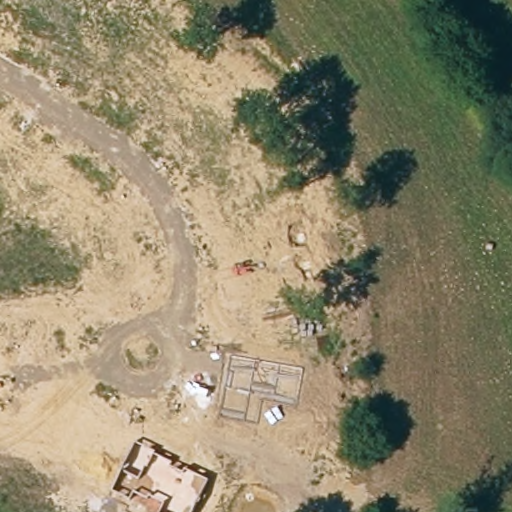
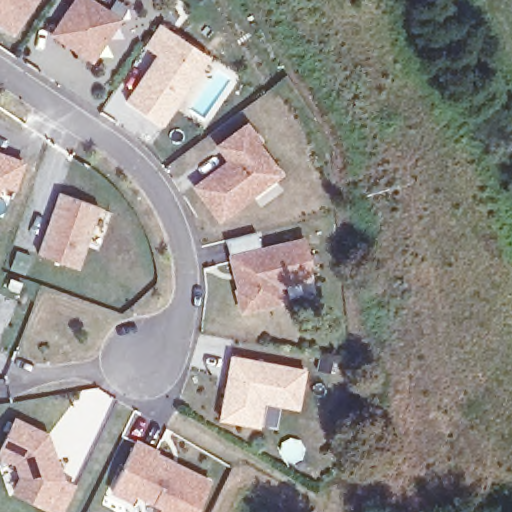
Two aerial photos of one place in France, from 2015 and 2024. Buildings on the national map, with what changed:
new [(33,0),(12,31),(0,23),(0,0),(33,0)]
new [(74,0),(90,0),(119,19),(91,61),(75,50),(70,46),(51,34),(74,0)]
new [(151,63),(157,54),(144,46),(159,23),(195,48),(207,56),(199,70),(161,125),(126,101),(148,69),(151,63)]
unchanged [(230,160),(218,145),(246,124),(257,140),(255,142),(278,173),(219,218),(195,186),(230,160)]
new [(23,162),(14,188),(0,183),(0,154),(23,162)]
new [(60,193),(99,206),(77,268),(38,254),(60,193)]
unchanged [(256,233),(260,249),(302,238),(310,267),(306,268),(308,278),(278,285),(282,301),(243,310),(238,289),(242,288),(236,263),(231,264),(225,240),(256,233)]
new [(262,403),(259,426),(220,419),(230,355),(305,368),(298,408),(262,403)]
new [(46,435),(52,451),(56,464),(61,479),(60,480),(75,487),(63,512),(58,512),(15,491),(21,476),(16,461),(0,453),(0,451),(15,420),(46,435)]
new [(195,512),(158,512),(160,506),(135,495),(130,502),(110,493),(135,439),(211,479),(195,512)]

